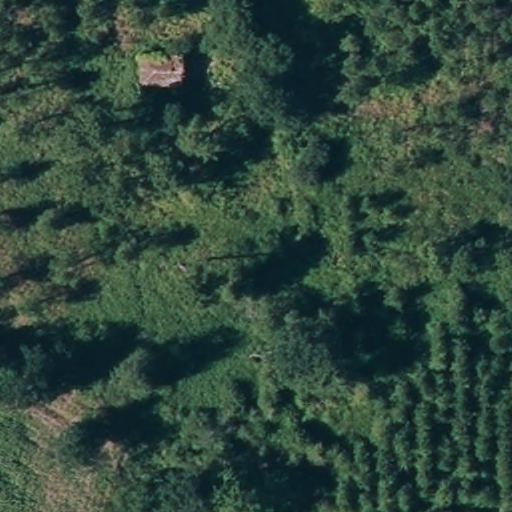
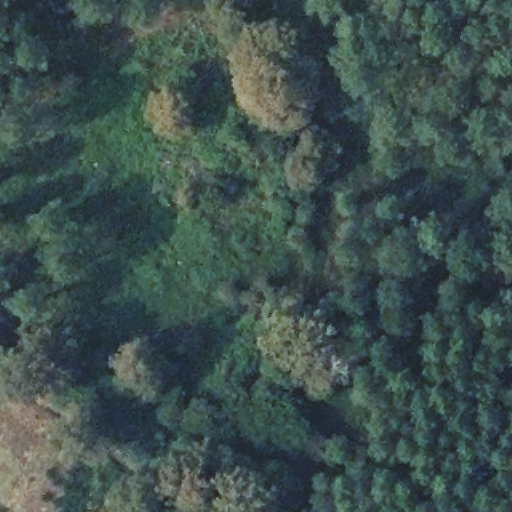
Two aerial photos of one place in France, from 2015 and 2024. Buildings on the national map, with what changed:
unchanged [(221,79),(145,80),(145,56),(220,55),(221,79)]

